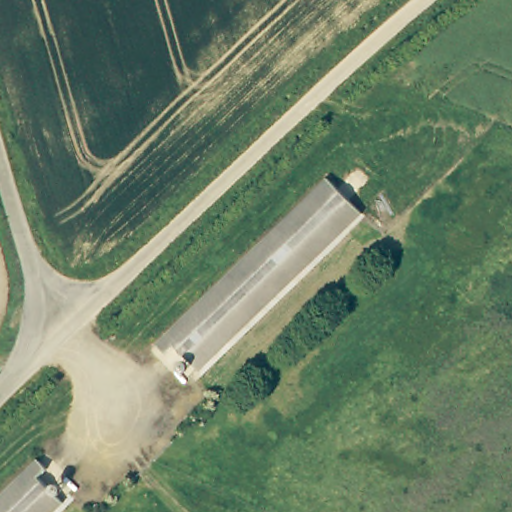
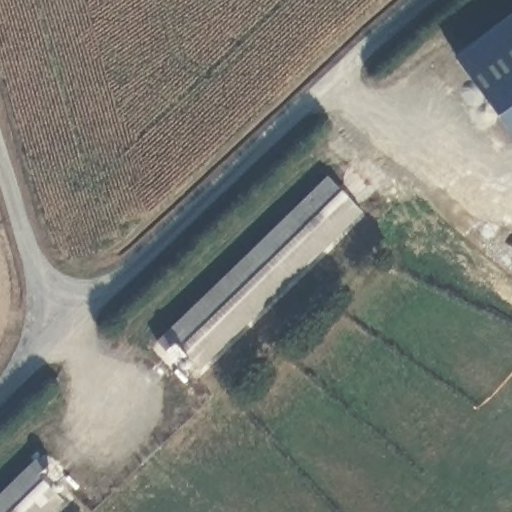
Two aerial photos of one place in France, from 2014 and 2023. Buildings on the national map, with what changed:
new [(512,20),(512,133),(457,60),(512,20)]
unchanged [(200,369),(177,346),(167,355),(159,345),(331,180),(363,212),(200,369)]
unchanged [(0,512),(0,499),(45,455),(55,466),(46,475),(68,496),(52,512),(0,512)]

